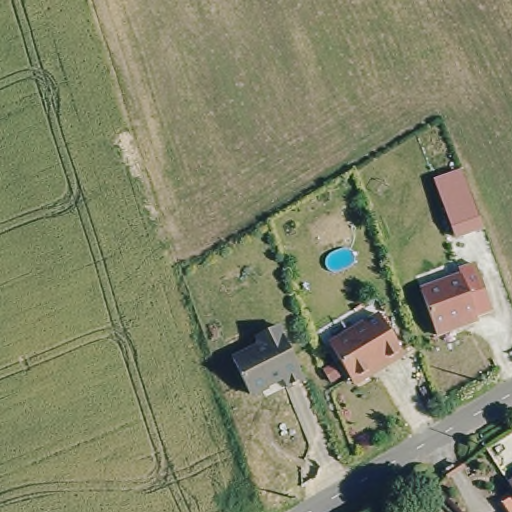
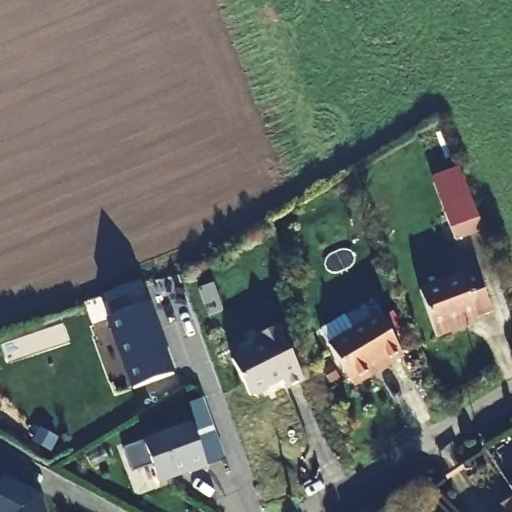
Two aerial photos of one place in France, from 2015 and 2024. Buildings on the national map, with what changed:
unchanged [(462,170),(485,230),(455,239),(433,180),(462,170)]
unchanged [(432,336),(415,291),(455,276),(453,271),(470,265),(487,310),(451,323),(453,328),(432,336)]
new [(175,373),(132,388),(107,319),(148,303),(175,373)]
unchanged [(375,317),(399,358),(383,367),(381,365),(368,371),(367,376),(355,384),(350,383),(347,384),(325,346),(375,317)]
unchanged [(252,350),(255,345),(252,340),(273,330),(300,381),(283,390),(279,381),(265,388),(264,392),(252,398),(248,396),(245,398),(227,362),(252,350)]
new [(226,459),(158,485),(142,440),(195,421),(188,403),(203,397),(226,459)]
new [(55,436),(49,448),(32,440),(39,427),(55,436)]
new [(46,512),(0,512),(0,477),(1,477),(3,475),(40,494),(46,512)]
unchanged [(498,501),(510,492),(512,495),(512,512),(505,512),(498,501)]

